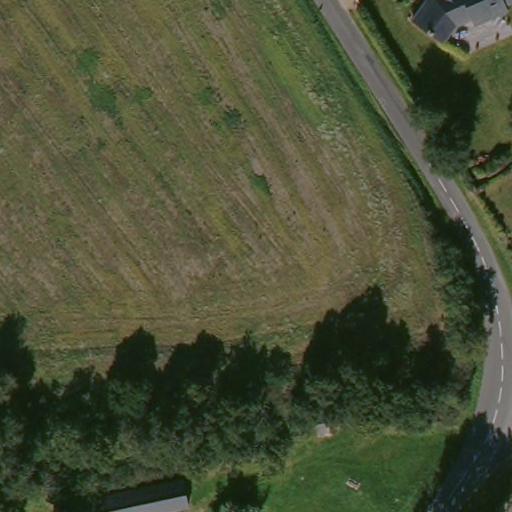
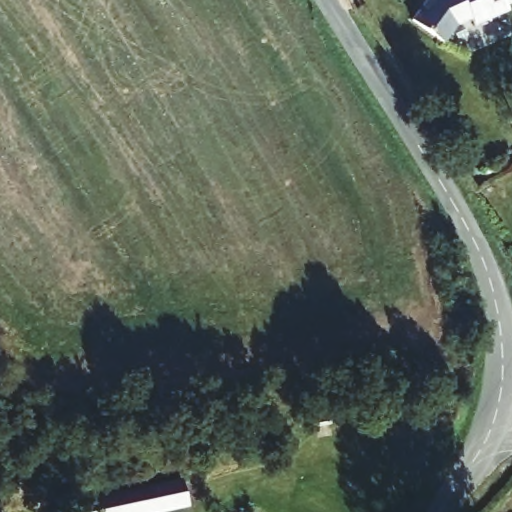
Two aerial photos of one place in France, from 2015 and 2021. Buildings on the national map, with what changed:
unchanged [(501,11),(467,25),(464,20),(449,26),(437,45),(405,26),(417,6),(421,0),(512,0),(498,6),(501,11)]
unchanged [(182,477),(188,502),(143,512),(73,512),(71,501),(182,477)]

